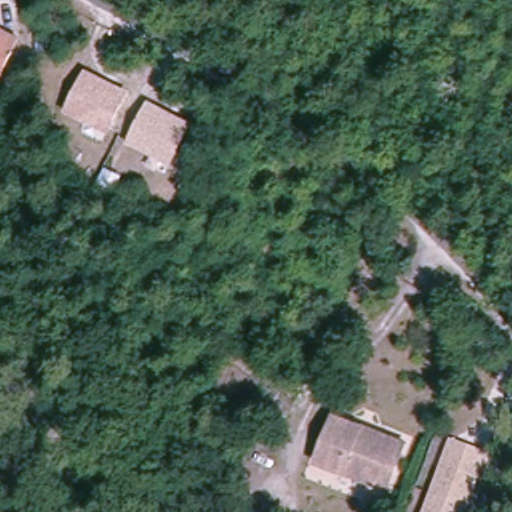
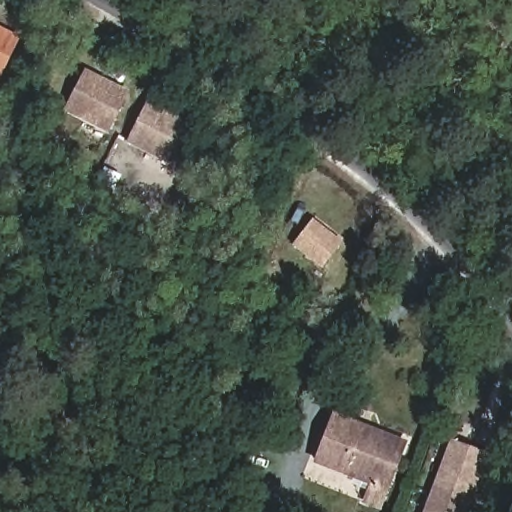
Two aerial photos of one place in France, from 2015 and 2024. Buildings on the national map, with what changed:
unchanged [(2,75),(0,75),(0,28),(20,38),(2,75)]
unchanged [(131,91),(107,134),(67,114),(87,70),(131,91)]
unchanged [(194,124),(172,166),(129,144),(151,101),(194,124)]
new [(316,223),(333,234),(343,243),(327,267),(298,247),(312,228),(316,223)]
unchanged [(385,507),(368,501),(377,483),(316,460),(334,413),(405,436),(385,507)]
unchanged [(457,439),(489,454),(463,512),(424,512),(457,439)]

